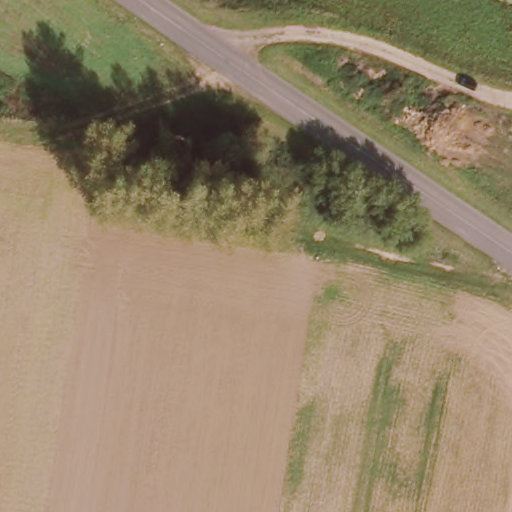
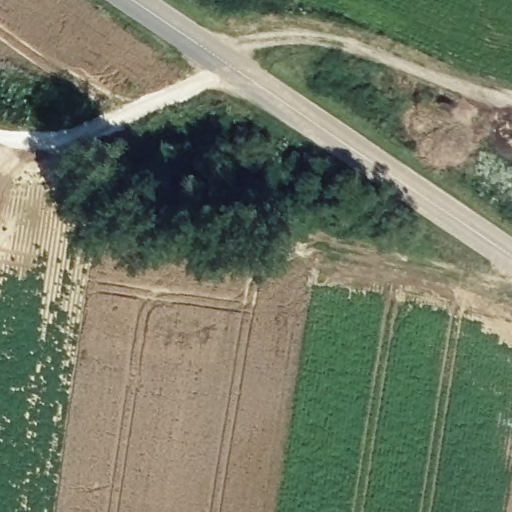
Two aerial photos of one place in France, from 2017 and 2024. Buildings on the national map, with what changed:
unchanged [(161,142),(185,144),(184,174),(160,173),(161,142)]

